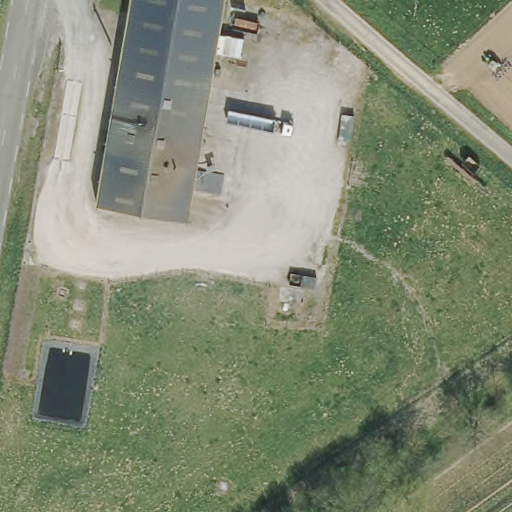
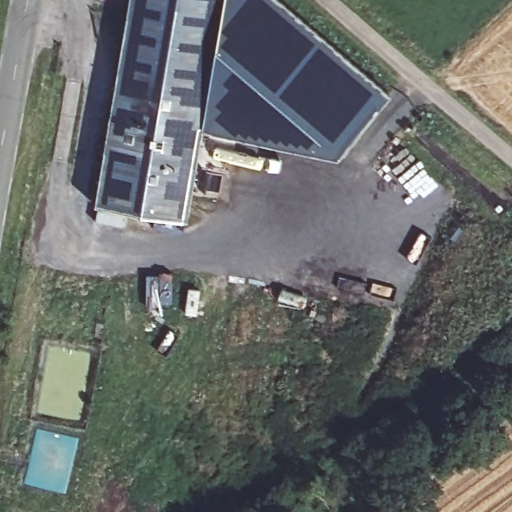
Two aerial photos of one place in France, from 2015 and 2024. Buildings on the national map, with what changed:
unchanged [(224,0),(212,70),(122,55),(130,0),(224,0)]
new [(339,155),(202,130),(212,70),(224,0),(283,0),(392,94),(339,155)]
unchanged [(122,55),(212,70),(187,220),(96,204),(122,55)]

